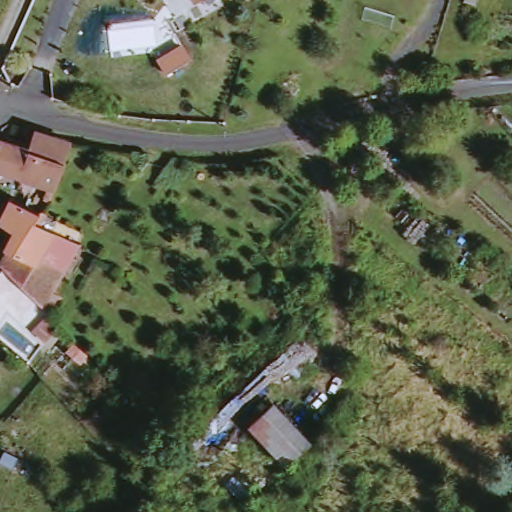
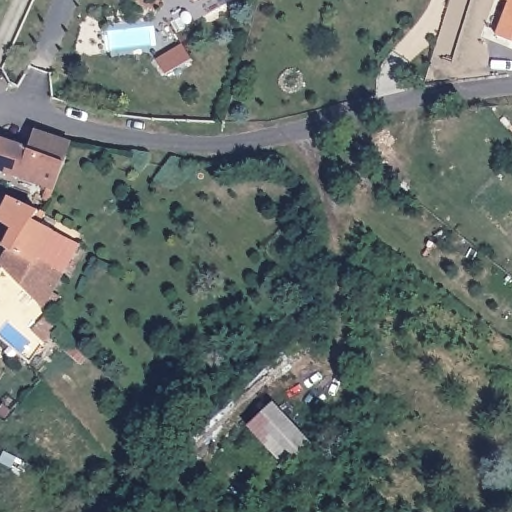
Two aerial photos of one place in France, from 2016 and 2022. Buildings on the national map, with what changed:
unchanged [(197,5),(194,0),(207,0),(197,5)]
new [(508,0),(512,0),(512,41),(494,34),(508,0)]
unchanged [(38,149),(46,134),(80,142),(65,192),(0,170),(0,160),(7,139),(38,149)]
unchanged [(18,303),(31,290),(7,265),(15,252),(10,248),(20,232),(4,221),(6,218),(0,215),(7,201),(12,203),(15,199),(45,214),(41,223),(85,245),(60,291),(70,296),(57,317),(67,325),(51,346),(15,315),(22,306),(18,303)]
unchanged [(22,306),(15,315),(13,313),(2,335),(0,334),(0,289),(18,303),(22,306)]
unchanged [(0,338),(0,334),(2,335),(0,338)]
unchanged [(275,404),(313,446),(287,470),(248,429),(275,404)]

